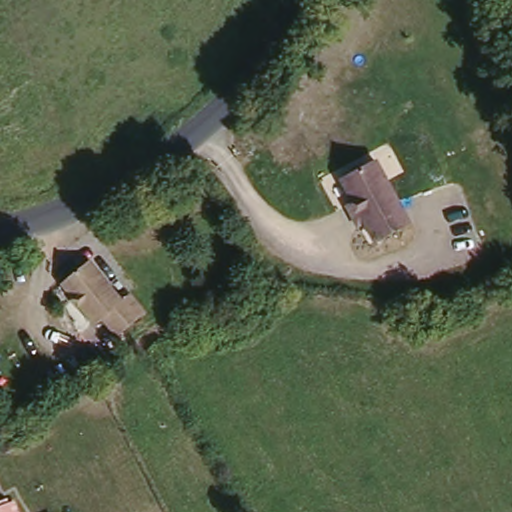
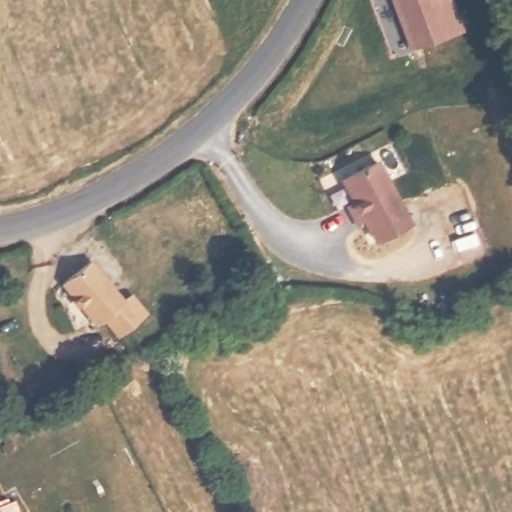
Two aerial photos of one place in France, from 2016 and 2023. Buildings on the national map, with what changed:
new [(464,35),(411,53),(392,0),(452,0),(464,35)]
unchanged [(344,209),(353,204),(337,181),(369,160),(410,224),(378,244),(366,225),(358,230),(344,209)]
unchanged [(90,268),(123,308),(128,303),(144,324),(118,342),(101,323),(96,328),(67,287),(90,268)]
unchanged [(17,512),(0,512),(0,511),(14,505),(17,512)]

